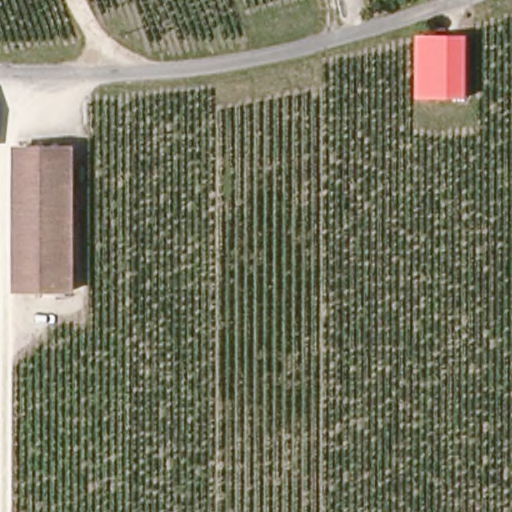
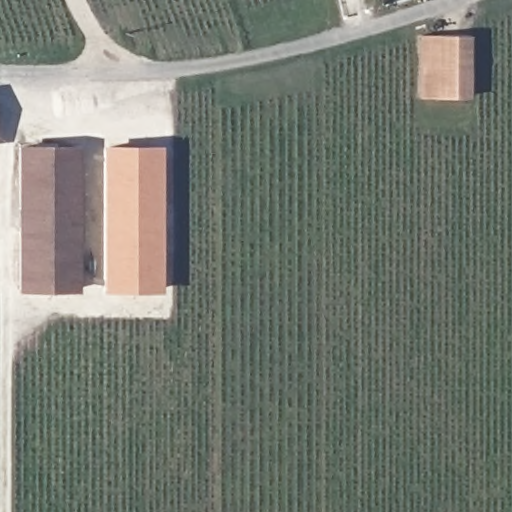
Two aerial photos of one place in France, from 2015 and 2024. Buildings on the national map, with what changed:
unchanged [(463,95),(417,94),(418,32),(465,33),(463,95)]
new [(100,145),(160,145),(160,293),(100,292),(100,145)]
unchanged [(20,278),(22,156),(79,158),(76,279),(20,278)]

